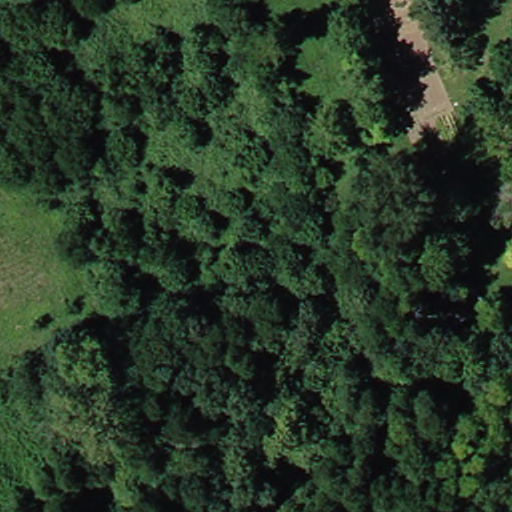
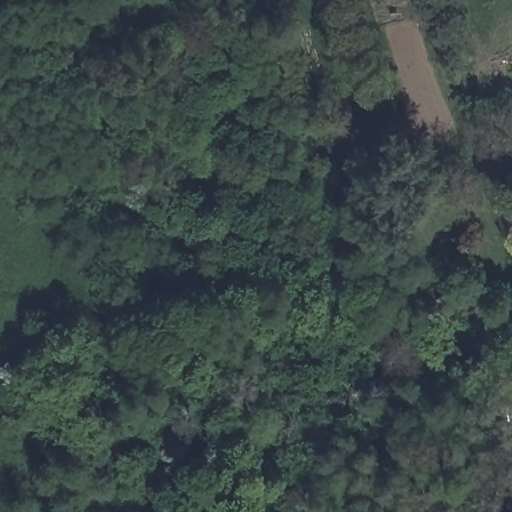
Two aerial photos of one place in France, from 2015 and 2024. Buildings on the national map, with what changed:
[]

